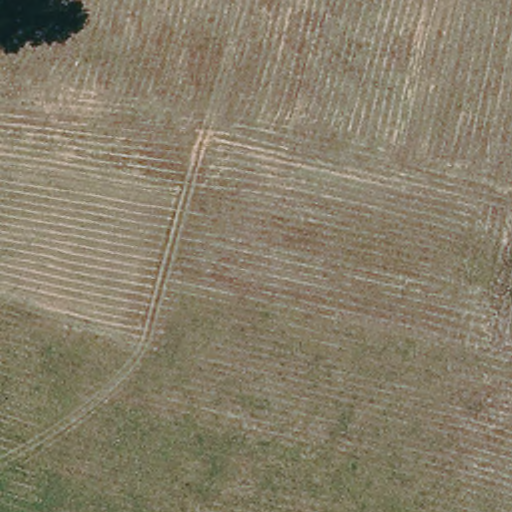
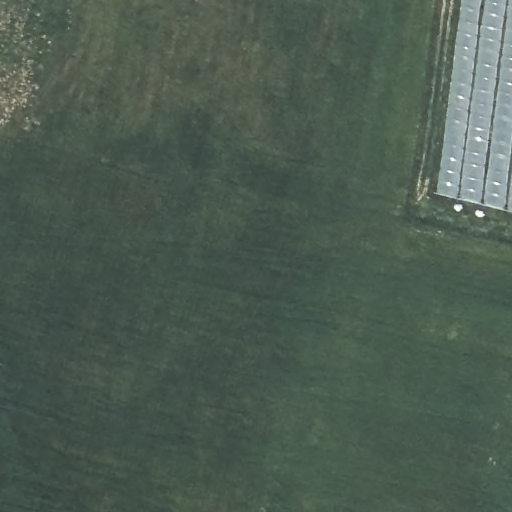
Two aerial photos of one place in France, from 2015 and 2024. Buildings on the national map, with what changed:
new [(435,194),(461,0),(512,0),(512,212),(435,194)]

